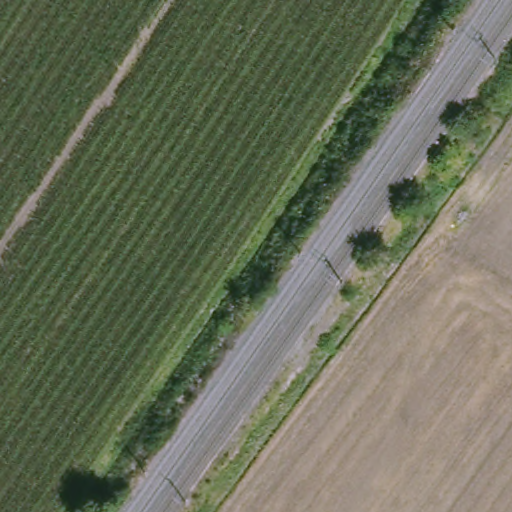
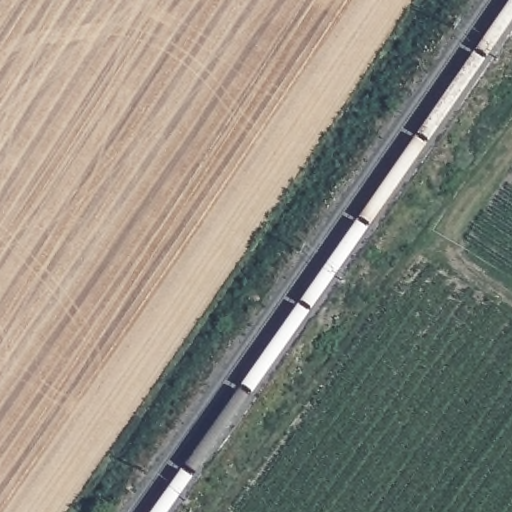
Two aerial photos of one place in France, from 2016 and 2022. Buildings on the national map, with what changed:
[]

